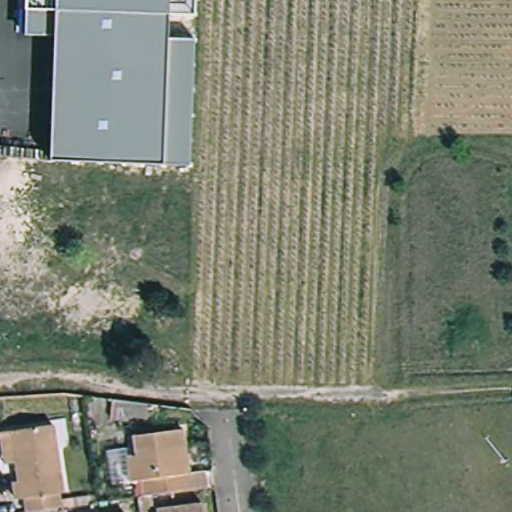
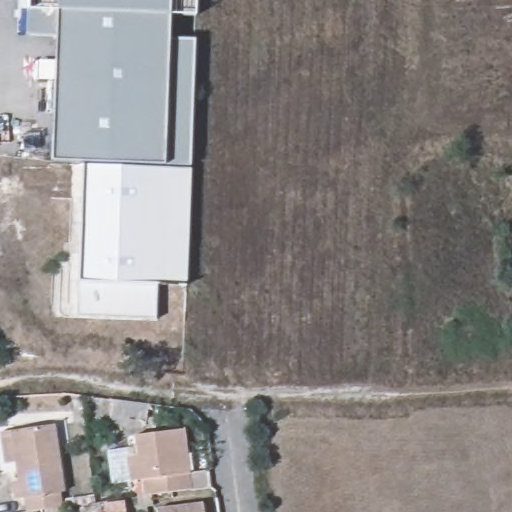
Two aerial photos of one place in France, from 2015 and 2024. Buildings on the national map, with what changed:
unchanged [(29,11),(29,0),(198,0),(197,17),(171,18),(169,38),(196,43),(192,170),(164,169),(52,164),(58,36),(29,38),(29,11)]
new [(183,284),(156,283),(154,319),(77,318),(78,281),(84,165),(189,170),(183,284)]
unchanged [(21,497),(19,479),(23,478),(17,428),(59,422),(73,507),(37,512),(33,512),(31,496),(21,497)]
unchanged [(145,478),(132,480),(130,459),(143,458),(141,432),(183,428),(189,491),(147,497),(145,478)]
unchanged [(160,507),(204,502),(205,512),(160,512),(160,507)]

